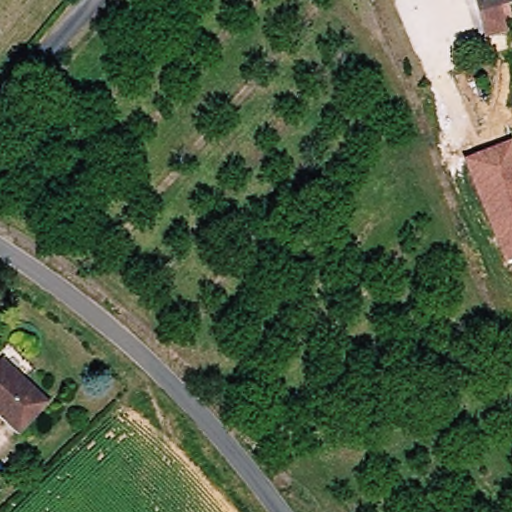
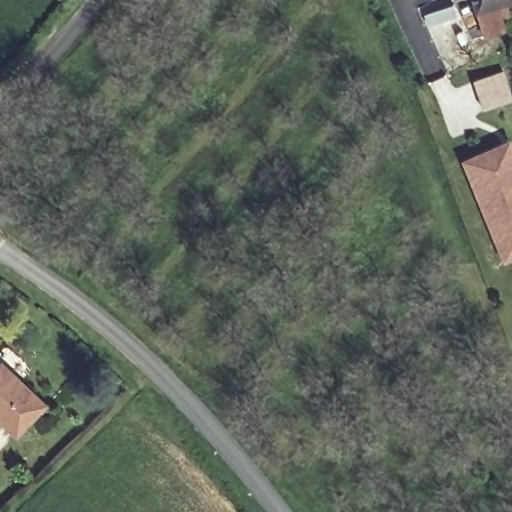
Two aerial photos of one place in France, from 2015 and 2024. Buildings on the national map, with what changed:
unchanged [(471,0),(510,0),(512,8),(512,11),(502,15),(506,29),(485,38),(471,0)]
new [(502,73),(510,102),(481,110),(473,82),(502,73)]
unchanged [(512,260),(503,262),(463,161),(512,143),(512,260)]
unchanged [(41,399),(10,432),(0,422),(0,360),(41,399)]

